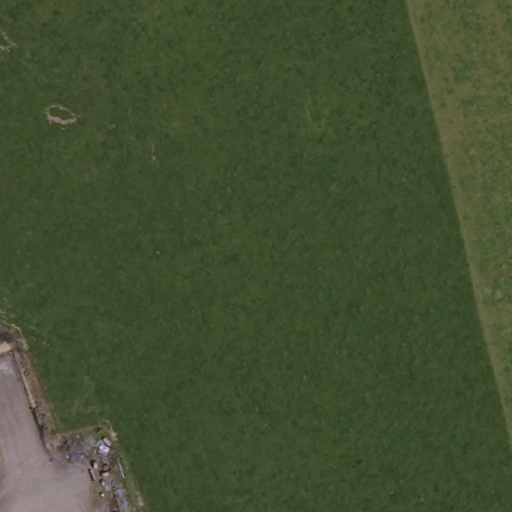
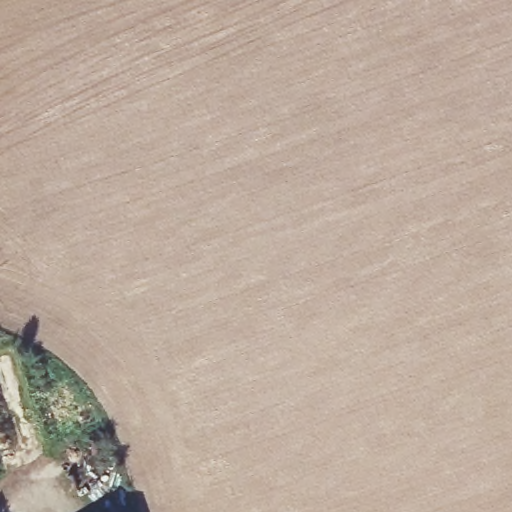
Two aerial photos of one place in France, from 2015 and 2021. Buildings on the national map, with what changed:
[]

